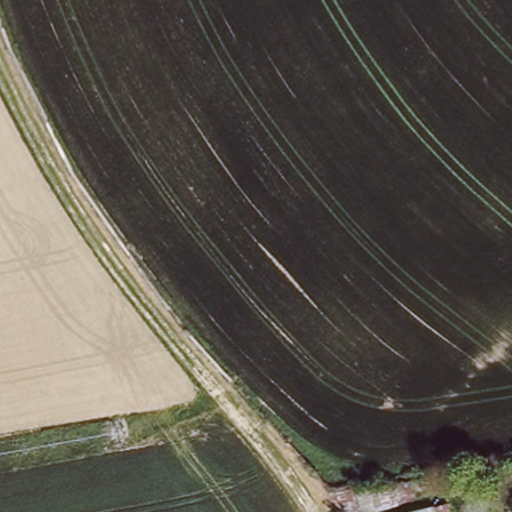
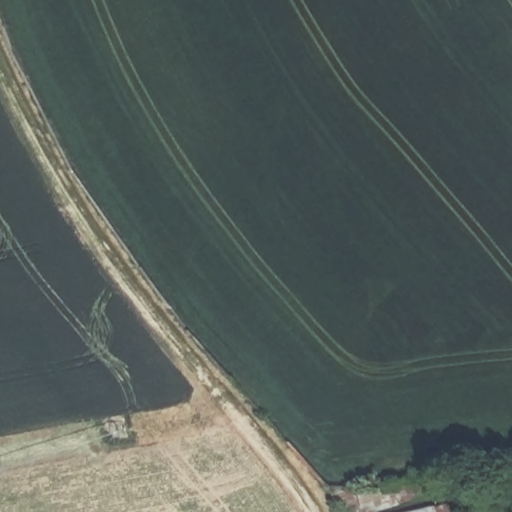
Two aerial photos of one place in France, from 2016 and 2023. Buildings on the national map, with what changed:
unchanged [(414,512),(436,508),(437,512),(414,512)]

